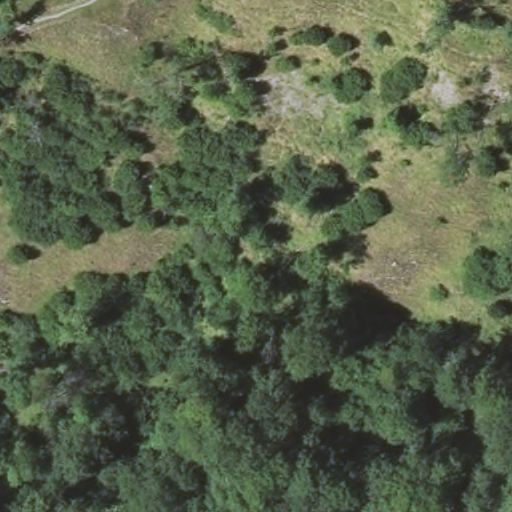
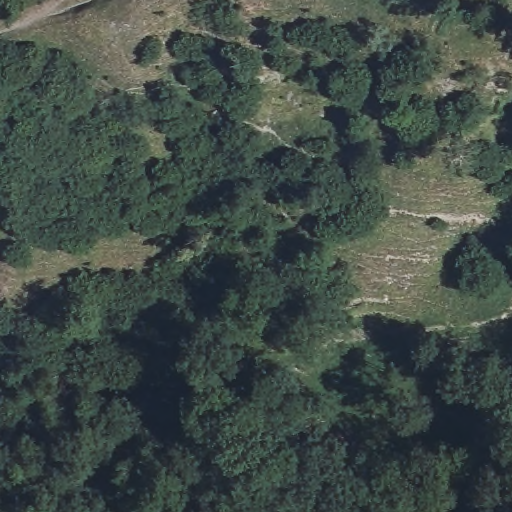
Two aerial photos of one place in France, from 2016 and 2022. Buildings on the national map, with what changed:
[]

